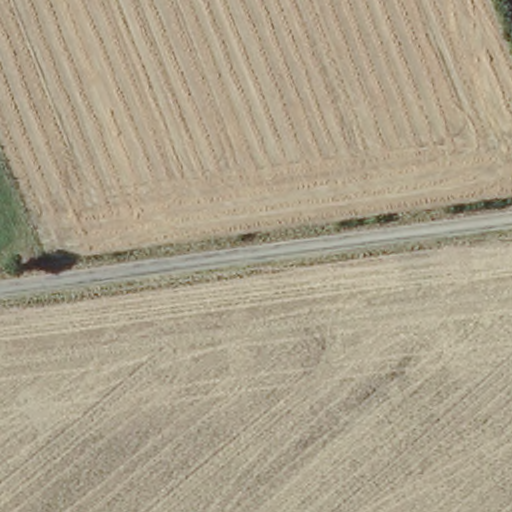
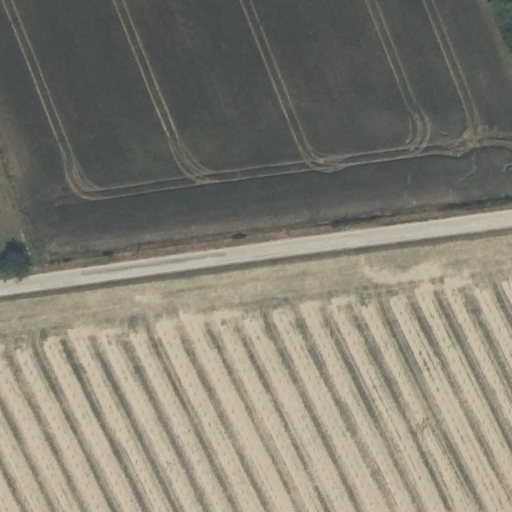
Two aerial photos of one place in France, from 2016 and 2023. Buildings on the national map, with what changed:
[]

